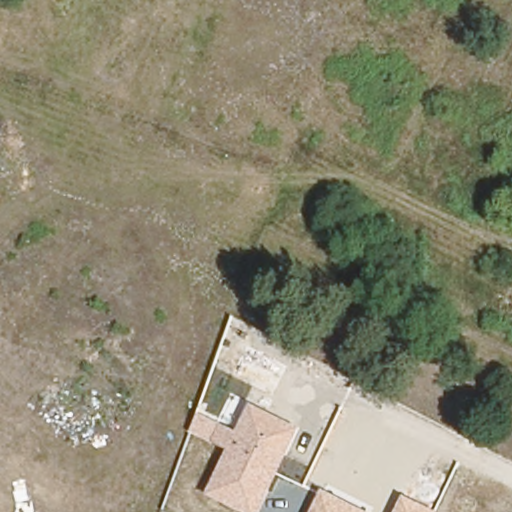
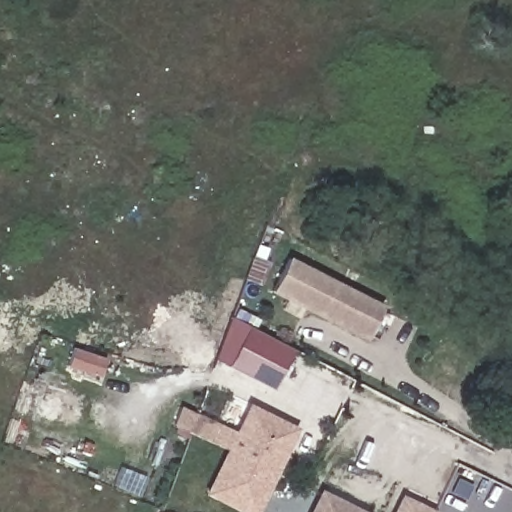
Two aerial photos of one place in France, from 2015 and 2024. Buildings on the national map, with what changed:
new [(366,342),(270,292),(288,257),(385,305),(366,342)]
new [(273,388),(228,367),(248,327),(292,350),(273,388)]
unchanged [(249,403),(300,427),(259,512),(243,512),(207,493),(226,450),(210,442),(190,432),(197,412),(219,423),(236,431),(249,403)]
unchanged [(321,488),(368,512),(310,512),(321,488)]
unchanged [(437,512),(395,512),(403,495),(437,512)]

